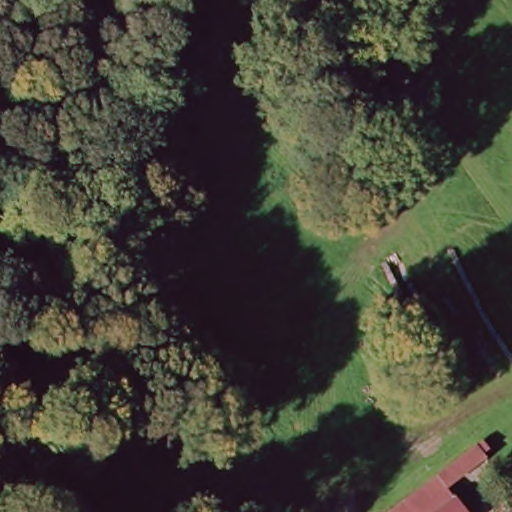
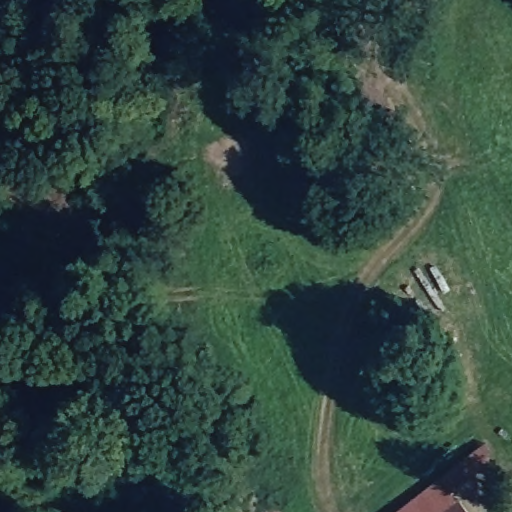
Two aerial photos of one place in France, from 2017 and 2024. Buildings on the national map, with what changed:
unchanged [(398,512),(481,448),(491,462),(454,490),(459,502),(466,512),(398,512)]

